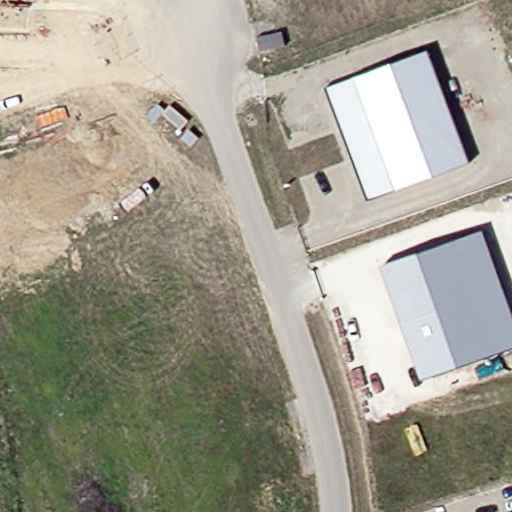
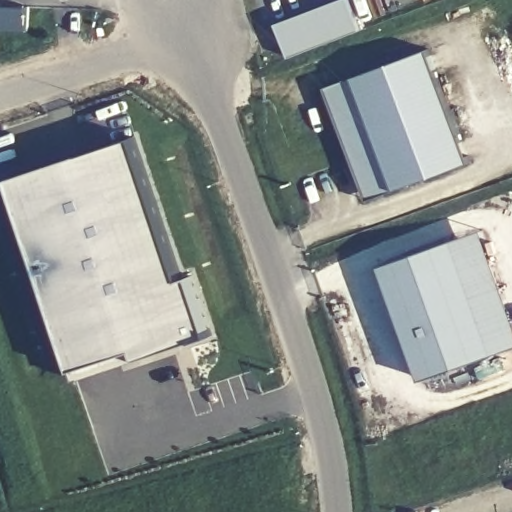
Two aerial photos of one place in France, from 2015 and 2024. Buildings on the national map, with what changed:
new [(344,0),(355,31),(285,57),(272,25),(339,0),(344,0)]
new [(23,35),(0,34),(0,9),(24,10),(23,35)]
unchanged [(476,163),(402,192),(358,79),(433,50),(476,163)]
unchanged [(402,192),(373,202),(331,89),(358,79),(402,192)]
new [(69,384),(2,181),(127,139),(175,282),(184,279),(204,339),(131,363),(74,382),(69,384)]
unchanged [(512,321),(512,344),(492,352),(451,238),(478,228),(512,321)]
unchanged [(492,352),(421,377),(381,263),(451,238),(492,352)]

